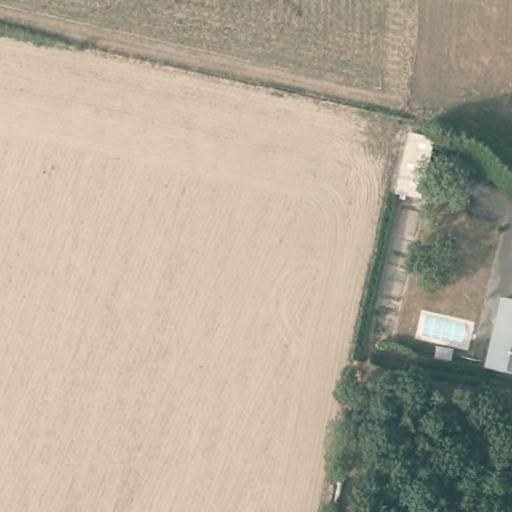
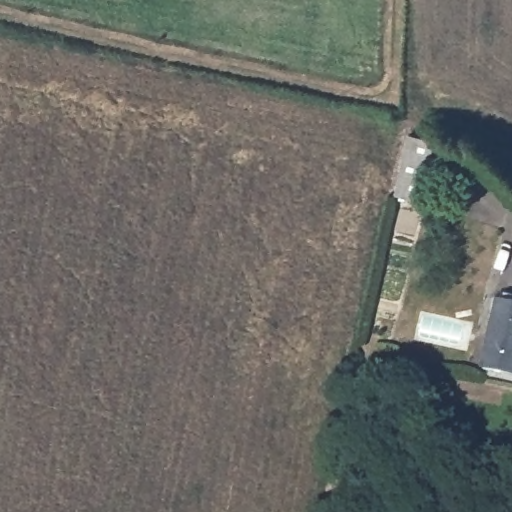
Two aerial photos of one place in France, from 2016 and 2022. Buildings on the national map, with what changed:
unchanged [(399,194),(411,136),(433,141),(422,198),(399,194)]
unchanged [(450,167),(454,152),(476,158),(474,171),(450,167)]
unchanged [(504,300),(512,301),(512,373),(489,366),(504,300)]

